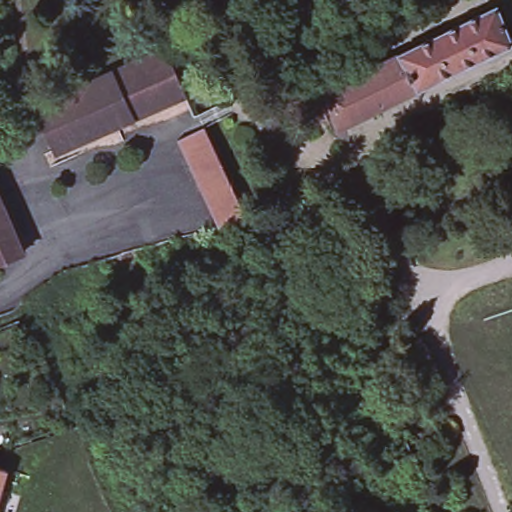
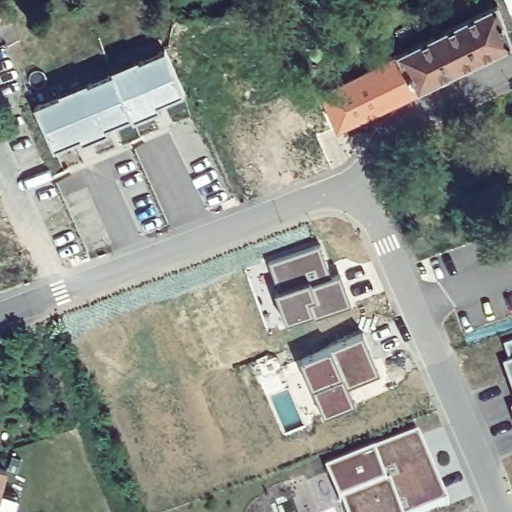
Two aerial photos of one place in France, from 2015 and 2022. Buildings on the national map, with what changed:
unchanged [(359,65),(363,74),(497,7),(512,44),(512,46),(337,129),(321,94),(352,79),(349,68),(359,65)]
unchanged [(168,31),(165,47),(152,44),(155,27),(168,31)]
unchanged [(163,56),(182,97),(53,156),(35,114),(163,56)]
demolished [(230,109),(202,124),(194,111),(225,97),(230,109)]
demolished [(202,124),(245,216),(216,224),(177,137),(202,124)]
demolished [(0,264),(0,208),(20,255),(0,264)]
new [(351,303),(349,305),(314,317),(312,314),(280,326),(269,295),(272,293),(262,265),(322,244),(330,266),(333,275),(337,273),(340,273),(351,303)]
new [(363,344),(378,379),(345,392),(353,410),(324,422),(302,370),(363,344)]
new [(512,346),(512,370),(504,348),(512,346)]
new [(419,432),(447,498),(410,512),(346,512),(340,497),(327,466),(419,432)]
unchanged [(0,500),(0,465),(7,467),(0,500)]

